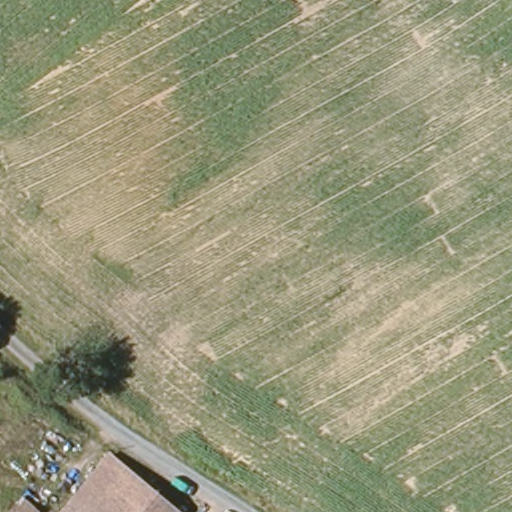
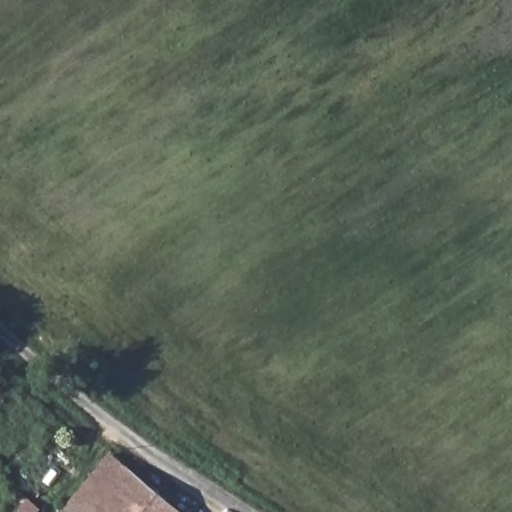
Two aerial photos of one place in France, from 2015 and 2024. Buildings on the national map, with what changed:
unchanged [(181,512),(67,512),(115,452),(181,512)]
unchanged [(44,512),(10,512),(27,493),(46,508),(44,512)]

